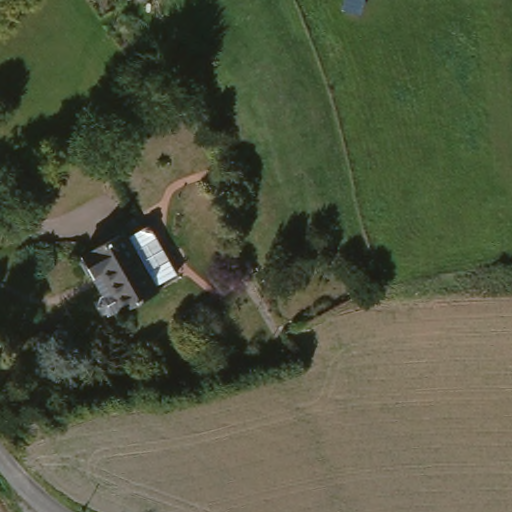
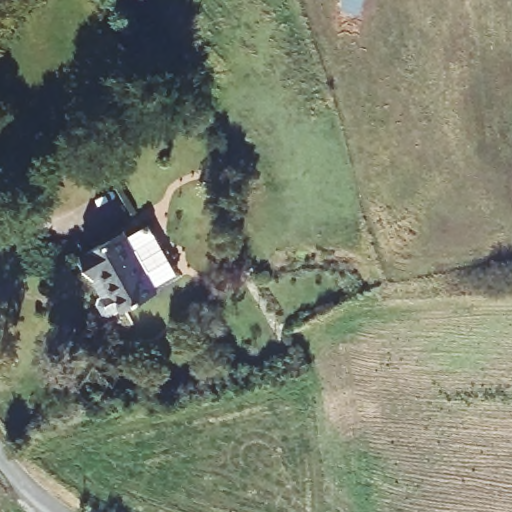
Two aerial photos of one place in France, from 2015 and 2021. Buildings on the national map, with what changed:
unchanged [(137,0),(150,0),(140,6),(137,0)]
unchanged [(162,285),(165,291),(120,315),(87,254),(132,230),(134,235),(156,223),(183,274),(162,285)]

